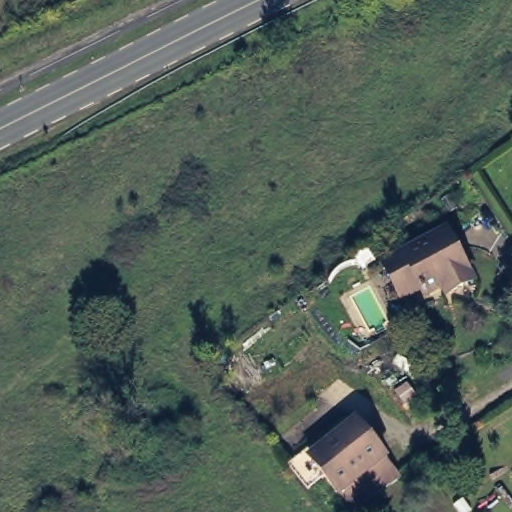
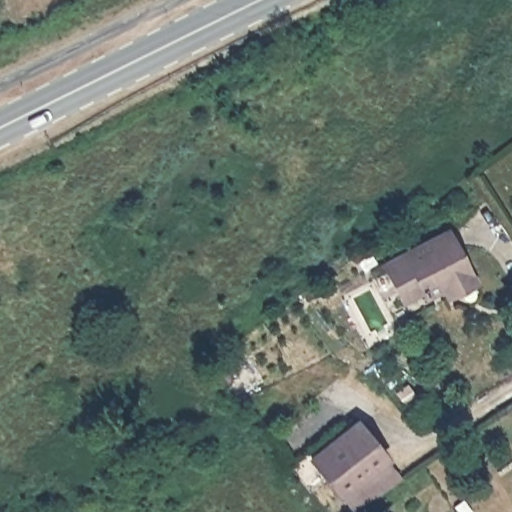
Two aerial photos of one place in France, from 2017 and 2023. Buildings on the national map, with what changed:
unchanged [(376,267),(391,259),(389,255),(450,226),(476,275),(451,288),(447,280),(425,292),(420,283),(407,290),(392,297),(376,267)]
unchanged [(413,397),(405,402),(397,391),(406,385),(413,397)]
unchanged [(308,457),(327,439),(329,440),(355,416),(388,451),(384,455),(398,470),(400,476),(355,506),(308,457)]

